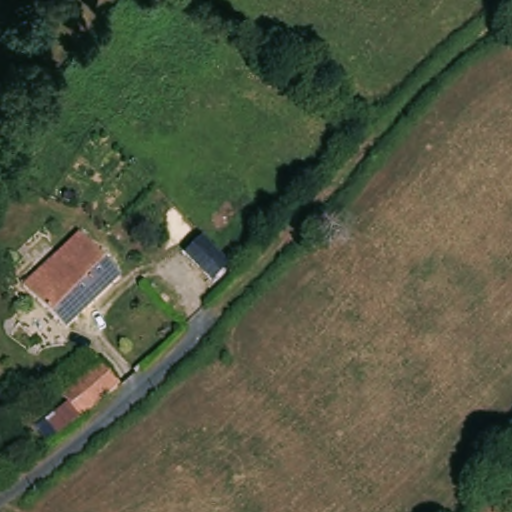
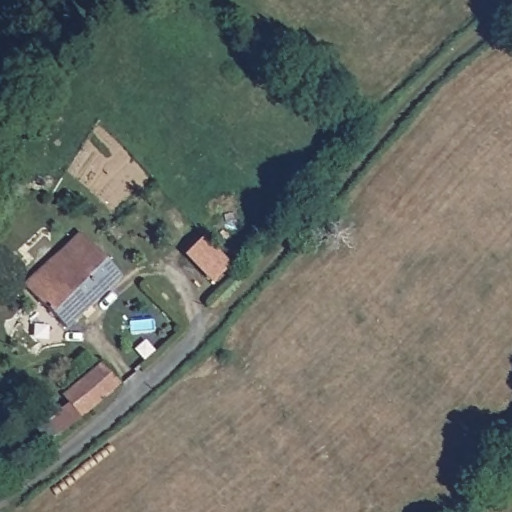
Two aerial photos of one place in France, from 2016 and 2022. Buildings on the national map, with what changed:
unchanged [(117,276),(95,301),(70,331),(31,295),(46,279),(40,273),(75,236),(117,276)]
unchanged [(56,408),(91,372),(110,389),(76,428),(56,408)]

